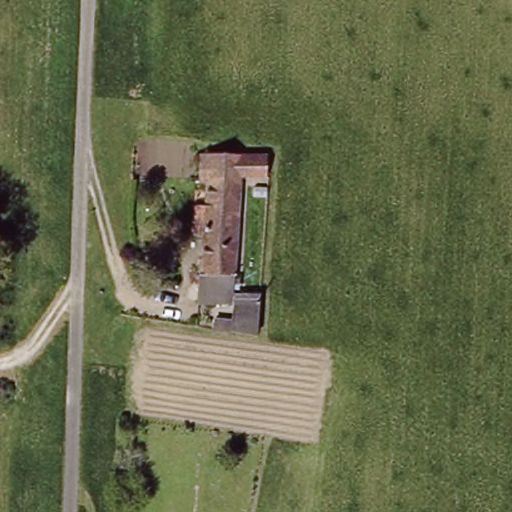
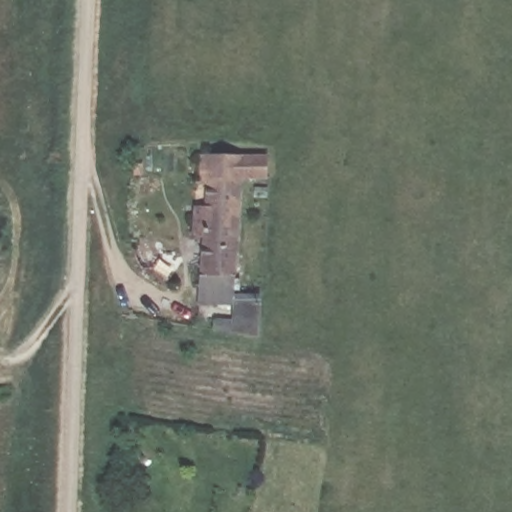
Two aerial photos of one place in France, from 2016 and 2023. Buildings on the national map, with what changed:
unchanged [(269,146),(269,181),(249,181),(244,285),(265,282),(264,336),(195,331),(195,313),(229,316),(231,302),(198,302),(202,241),(192,236),(192,202),(206,203),(209,185),(198,181),(204,148),(269,146)]

